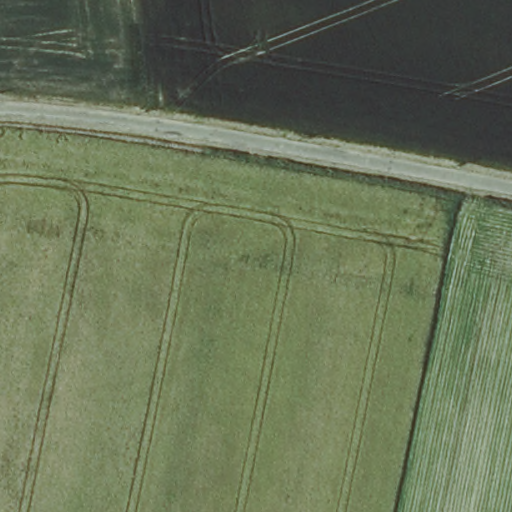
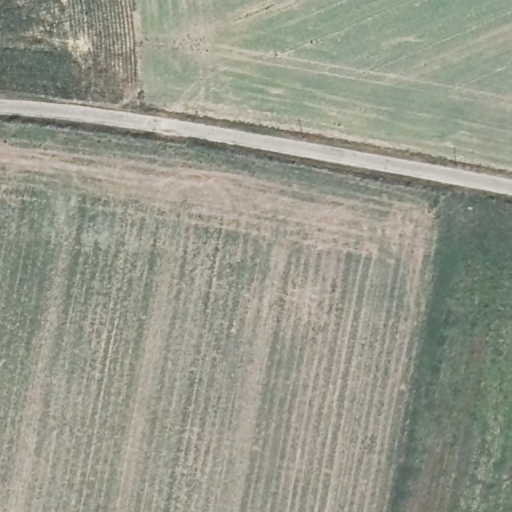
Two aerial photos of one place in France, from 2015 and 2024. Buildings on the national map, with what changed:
[]

